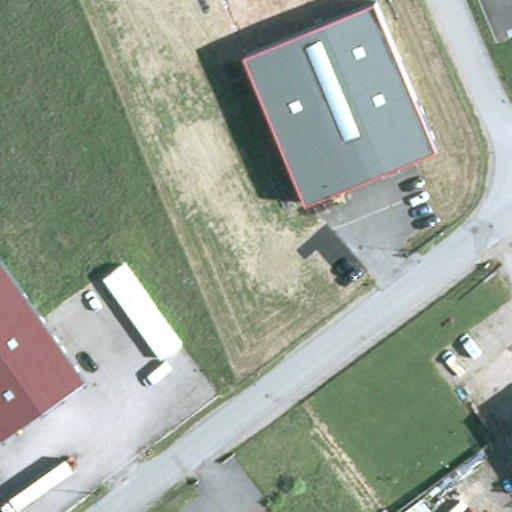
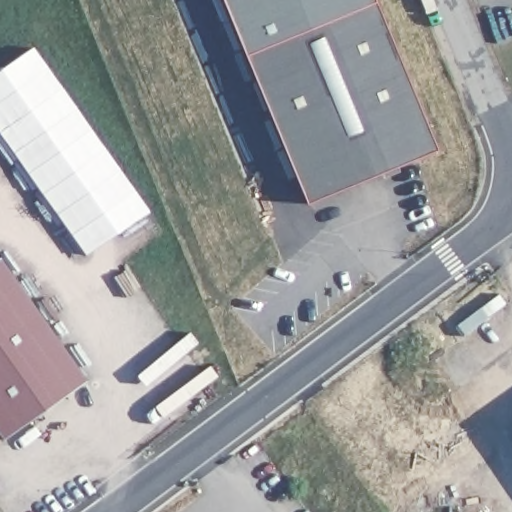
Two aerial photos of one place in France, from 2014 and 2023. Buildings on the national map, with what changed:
new [(225,0),(376,0),(377,1),(247,53),(225,0)]
unchanged [(377,1),(437,147),(307,200),(247,53),(377,1)]
new [(150,212),(85,255),(0,136),(0,70),(33,46),(150,212)]
unchanged [(3,440),(0,435),(0,256),(2,255),(90,379),(3,440)]

